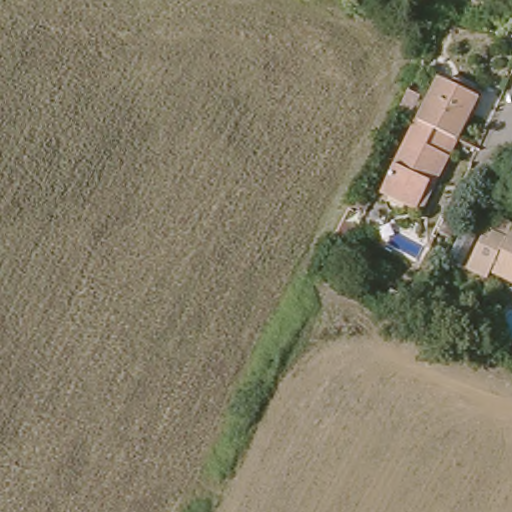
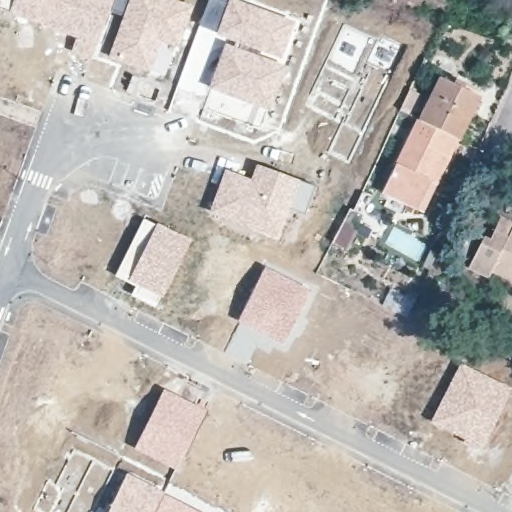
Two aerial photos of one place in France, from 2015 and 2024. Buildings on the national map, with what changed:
new [(12,0),(114,0),(110,11),(95,56),(92,62),(69,54),(73,38),(8,11),(12,0)]
new [(121,15),(110,11),(114,0),(178,0),(194,5),(177,47),(162,41),(147,77),(118,65),(105,60),(121,15)]
new [(198,26),(208,0),(237,0),(249,3),(296,21),(281,62),(223,40),(216,37),(216,35),(214,34),(215,32),(198,26)]
new [(234,47),(235,45),(258,53),(256,56),(285,66),(269,112),(208,88),(225,44),(234,47)]
unchanged [(479,96),(458,139),(422,121),(443,78),(479,96)]
unchanged [(422,121),(458,139),(438,185),(433,182),(418,211),(383,195),(419,120),(422,121)]
new [(223,169),(249,177),(255,163),(314,185),(304,213),(289,208),(278,239),(206,212),(223,169)]
unchanged [(494,266),(489,273),(470,264),(486,232),(491,234),(503,212),(512,217),(512,275),(494,266)]
new [(191,240),(163,297),(161,297),(155,307),(131,296),(135,286),(114,276),(143,218),(156,225),(158,223),(191,240)]
unchanged [(361,229),(350,252),(334,244),(346,220),(361,229)]
new [(264,265),(311,290),(284,344),(236,321),(264,265)]
demolished [(422,295),(413,313),(402,307),(409,290),(422,295)]
new [(459,360),(512,387),(483,447),(429,420),(459,360)]
new [(163,387),(207,409),(176,469),(133,447),(163,387)]
new [(202,512),(106,512),(126,471),(202,512)]

